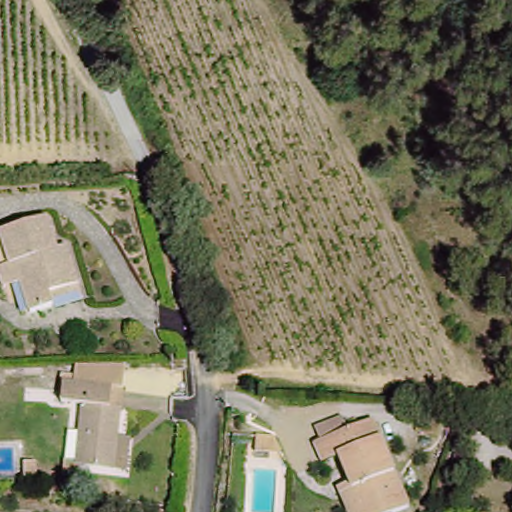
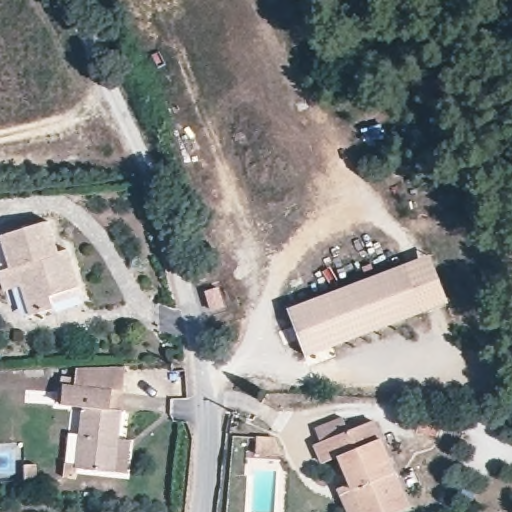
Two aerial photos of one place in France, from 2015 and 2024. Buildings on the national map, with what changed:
unchanged [(50,222),(59,253),(76,249),(90,298),(28,315),(21,290),(1,295),(0,291),(0,235),(50,222)]
new [(286,308),(430,253),(448,302),(305,357),(286,308)]
unchanged [(135,471),(125,471),(84,473),(82,417),(62,418),(61,397),(73,397),(71,371),(120,368),(123,433),(132,432),(135,471)]
unchanged [(331,492),(345,488),(335,461),(322,464),(315,444),(324,442),(319,427),(343,419),(346,422),(365,417),(369,428),(381,424),(410,512),(337,512),(331,492)]
unchanged [(281,453),(261,452),(262,437),(281,439),(281,453)]

